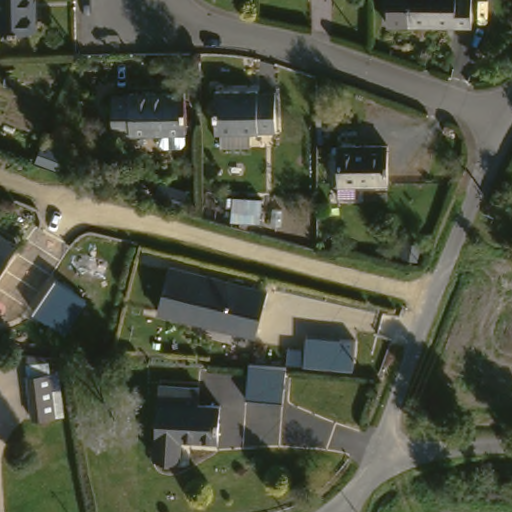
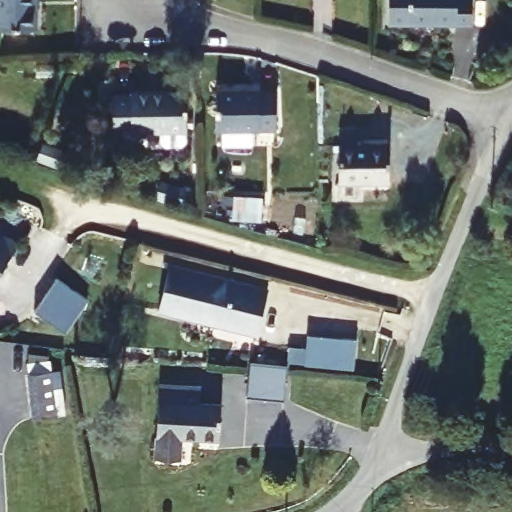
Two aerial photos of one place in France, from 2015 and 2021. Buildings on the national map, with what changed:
unchanged [(1,25),(1,0),(41,0),(41,25),(1,25)]
unchanged [(479,0),(479,25),(452,25),(414,25),(415,16),(415,0),(479,0)]
unchanged [(219,145),(220,125),(217,125),(216,83),(262,84),(262,88),(282,89),(281,126),(246,126),(246,145),(219,145)]
unchanged [(113,125),(121,90),(138,94),(140,88),(193,100),(184,140),(113,125)]
unchanged [(388,185),(340,177),(346,137),(394,144),(388,185)]
unchanged [(0,274),(0,225),(24,240),(0,274)]
unchanged [(270,286),(259,330),(161,303),(173,260),(270,286)]
unchanged [(88,300),(68,331),(36,311),(56,279),(88,300)]
unchanged [(306,347),(307,336),(357,340),(354,371),(304,365),(304,363),(289,362),(290,347),(306,347)]
unchanged [(31,365),(57,362),(61,409),(36,411),(31,365)]
unchanged [(251,362),(286,365),(284,400),(247,395),(251,362)]
unchanged [(166,373),(207,380),(204,401),(226,405),(221,438),(188,434),(186,452),(155,448),(166,373)]

